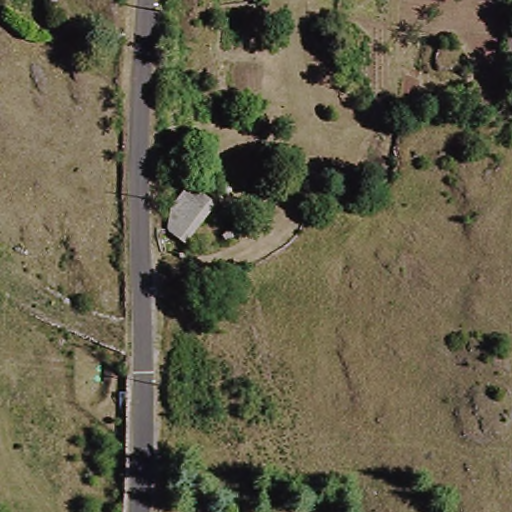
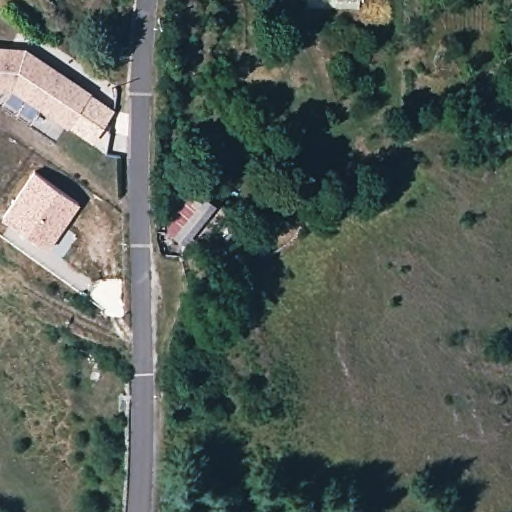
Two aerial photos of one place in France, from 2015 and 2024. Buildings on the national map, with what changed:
new [(92,142),(70,125),(69,127),(12,90),(0,89),(0,46),(26,47),(115,109),(92,142)]
new [(37,173),(81,205),(49,249),(5,217),(37,173)]
unchanged [(207,208),(209,210),(185,242),(172,231),(173,212),(192,189),(197,182),(209,192),(203,198),(210,204),(207,208)]

